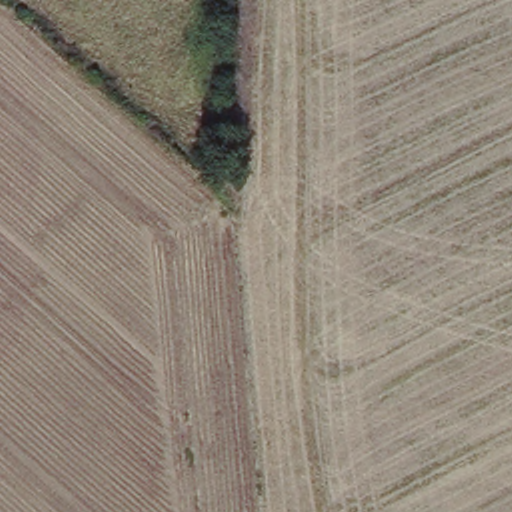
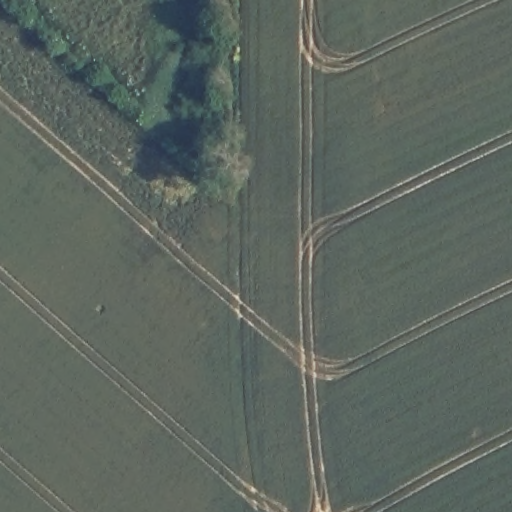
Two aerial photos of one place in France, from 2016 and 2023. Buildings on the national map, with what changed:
[]

